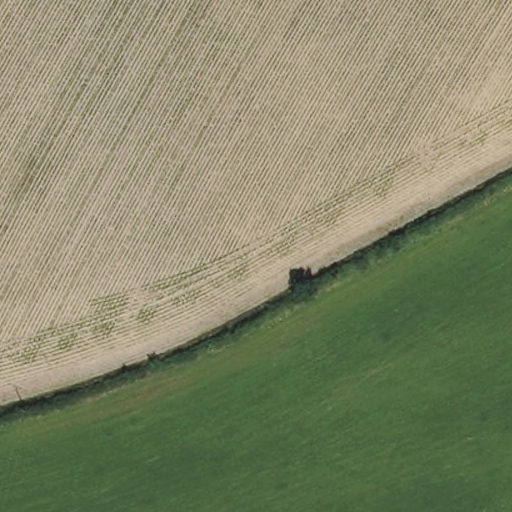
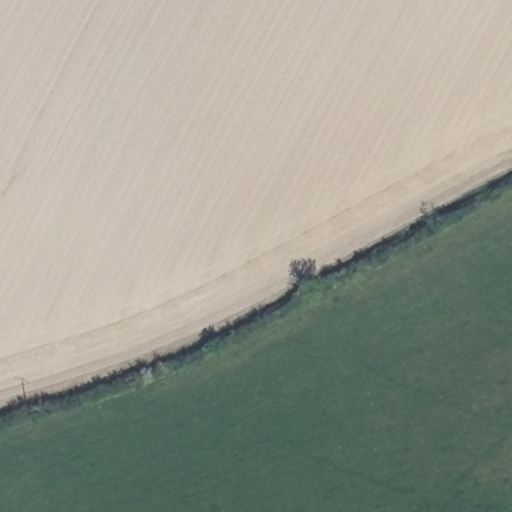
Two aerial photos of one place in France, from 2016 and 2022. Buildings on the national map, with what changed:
[]

